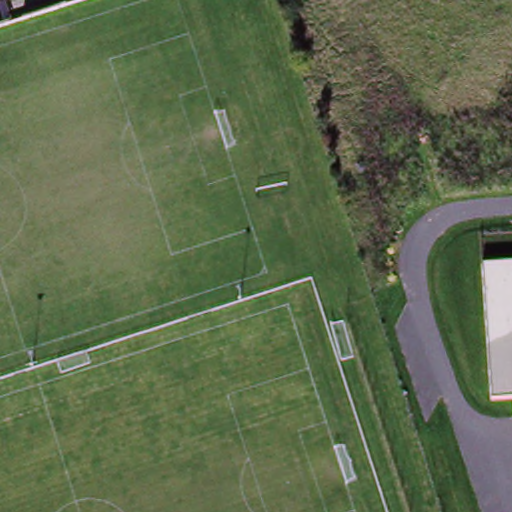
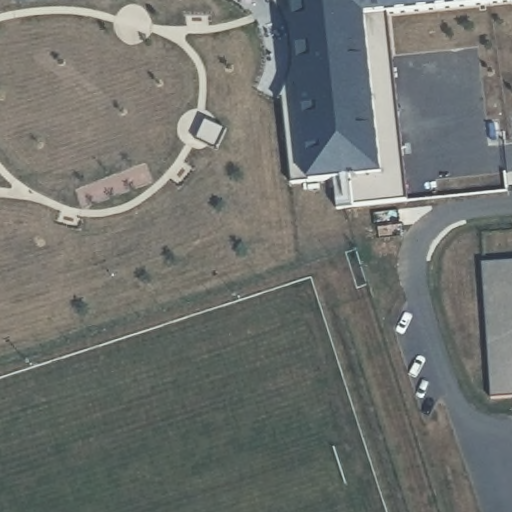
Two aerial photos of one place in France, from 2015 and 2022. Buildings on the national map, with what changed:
new [(407,199),(353,207),(348,178),(311,182),(311,179),(291,183),(284,100),(279,99),(289,78),(292,60),(292,45),(288,27),(283,14),(275,0),(512,0),(512,3),(388,16),(407,199)]
unchanged [(483,264),(512,262),(512,398),(492,399),(483,264)]

